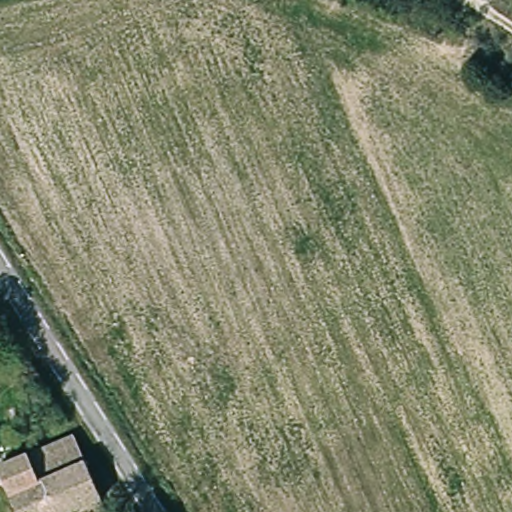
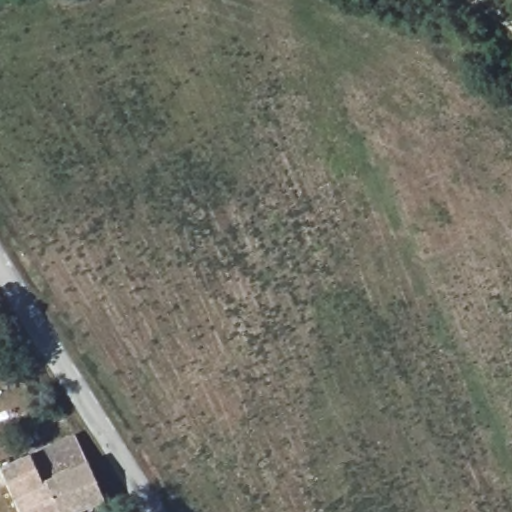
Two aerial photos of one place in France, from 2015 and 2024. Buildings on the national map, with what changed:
unchanged [(0,466),(71,438),(103,505),(85,512),(18,512),(0,466)]

